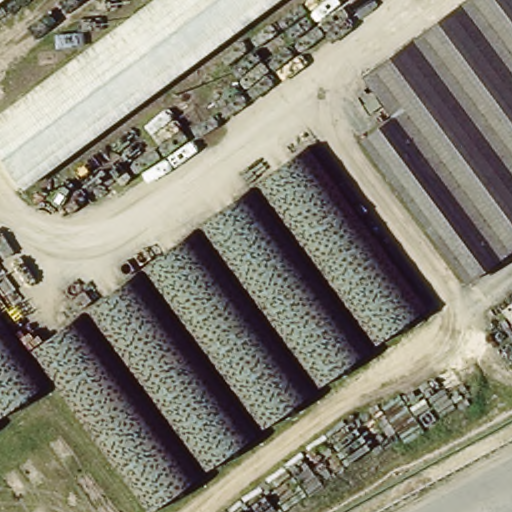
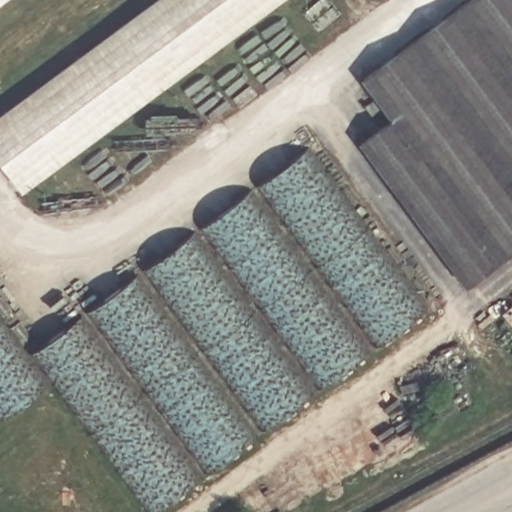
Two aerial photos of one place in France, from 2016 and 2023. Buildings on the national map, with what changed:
unchanged [(291,0),(32,195),(0,151),(0,122),(162,0),(291,0)]
unchanged [(383,164),(417,138),(377,84),(487,0),(512,0),(512,255),(475,284),(383,164)]
unchanged [(165,512),(157,512),(53,385),(0,424),(0,309),(37,358),(309,150),(433,316),(165,512)]

